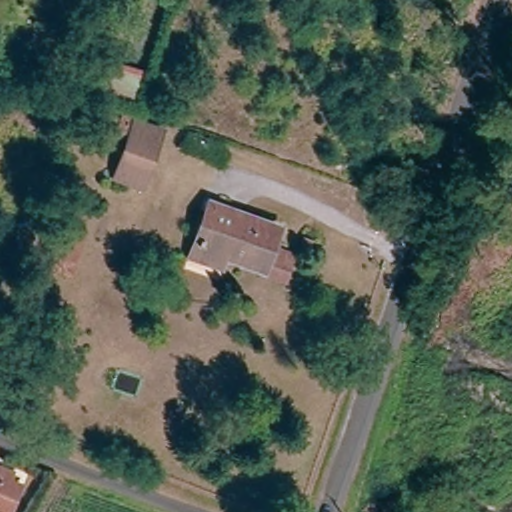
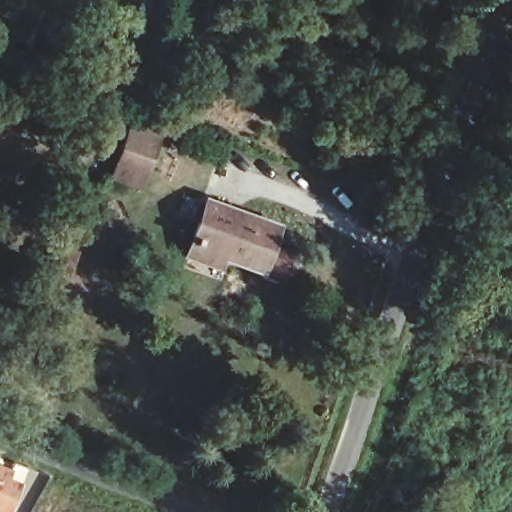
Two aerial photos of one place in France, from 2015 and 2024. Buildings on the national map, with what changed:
unchanged [(135,116),(165,127),(152,162),(146,179),(113,167),(120,151),(135,116)]
unchanged [(220,262),(217,267),(190,257),(197,238),(192,236),(206,205),(232,214),(241,217),(276,230),(261,267),(257,275),(220,262)]
unchanged [(39,415),(50,422),(37,450),(24,443),(39,415)]
unchanged [(7,492),(0,508),(0,476),(13,482),(7,492)]

